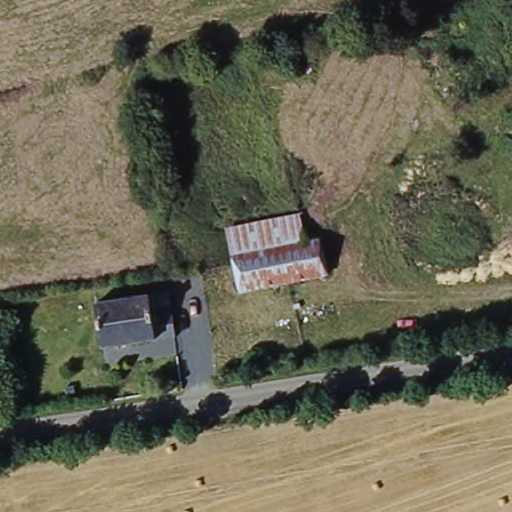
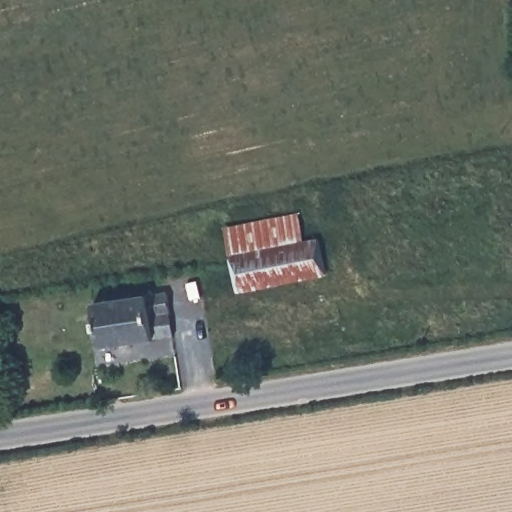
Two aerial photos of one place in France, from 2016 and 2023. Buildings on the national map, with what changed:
unchanged [(293,222),(299,248),(315,245),(324,278),(242,299),(230,238),(293,222)]
unchanged [(172,301),(175,318),(158,322),(159,332),(106,340),(100,310),(172,301)]

